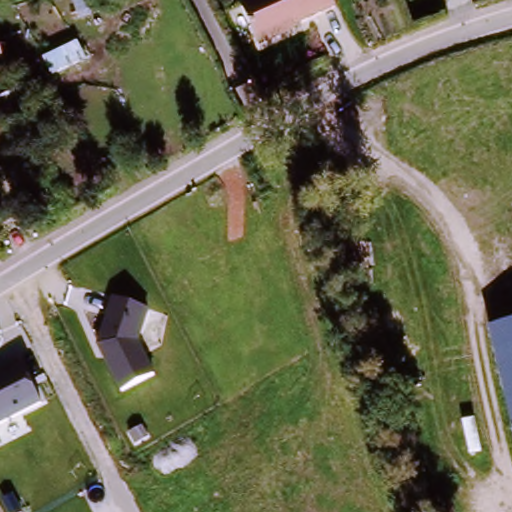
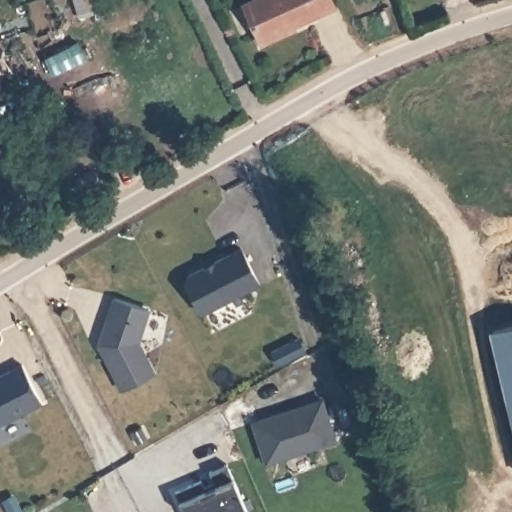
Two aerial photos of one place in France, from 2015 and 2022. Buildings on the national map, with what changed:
unchanged [(264,40),(247,1),(249,0),(334,0),(336,3),(282,29),(284,31),(264,40)]
unchanged [(51,73),(44,54),(83,37),(90,56),(51,73)]
unchanged [(0,65),(0,59),(1,65),(0,65)]
unchanged [(32,111),(54,102),(65,132),(43,139),(32,111)]
new [(184,276),(200,268),(201,270),(212,264),(211,262),(238,248),(256,284),(198,314),(181,283),(184,276)]
unchanged [(139,343),(155,374),(121,394),(100,346),(107,318),(88,312),(93,297),(110,299),(149,312),(139,343)]
unchanged [(498,333),(512,329),(512,410),(498,333)]
unchanged [(42,406),(0,427),(0,376),(23,365),(42,406)]
new [(319,401),(333,442),(264,464),(251,424),(319,401)]
new [(198,482),(203,492),(213,487),(206,474),(224,466),(245,512),(180,512),(172,494),(198,482)]

